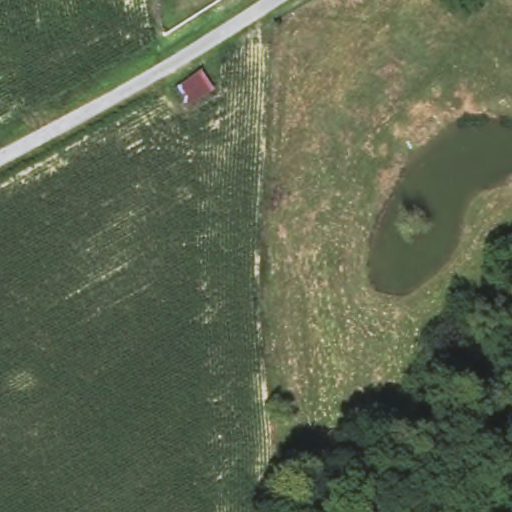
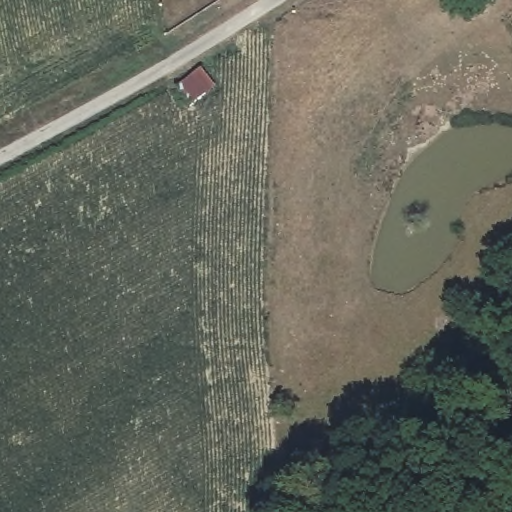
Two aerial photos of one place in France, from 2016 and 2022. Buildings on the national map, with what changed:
unchanged [(212,72),(222,93),(191,108),(180,87),(212,72)]

